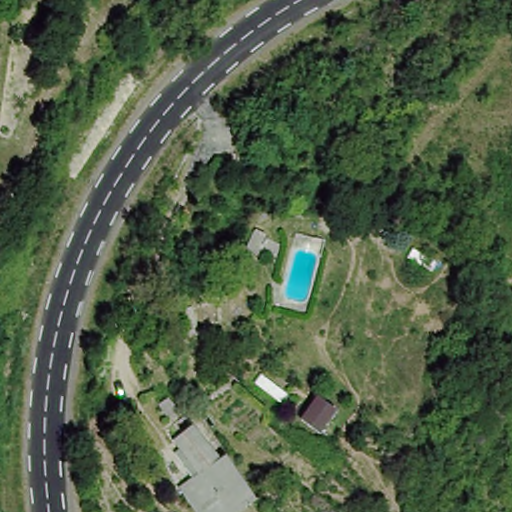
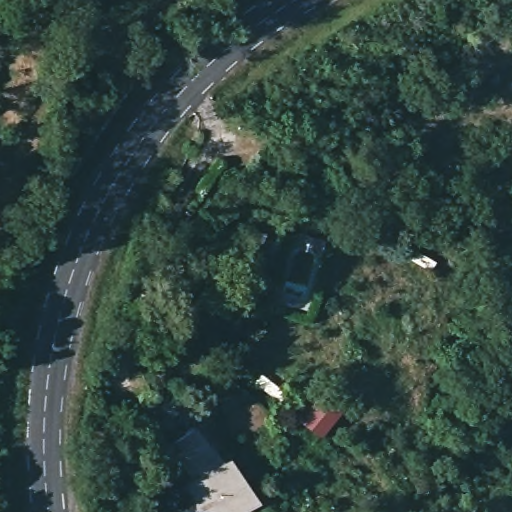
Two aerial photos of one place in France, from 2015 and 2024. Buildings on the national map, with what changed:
unchanged [(188,512),(179,495),(197,479),(186,463),(172,442),(193,427),(209,448),(222,465),(247,512),(188,512)]

